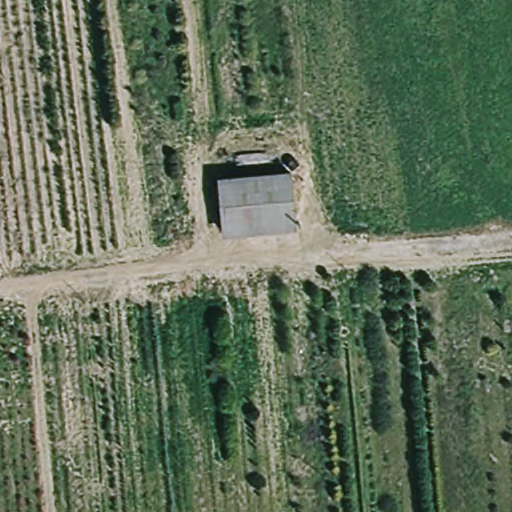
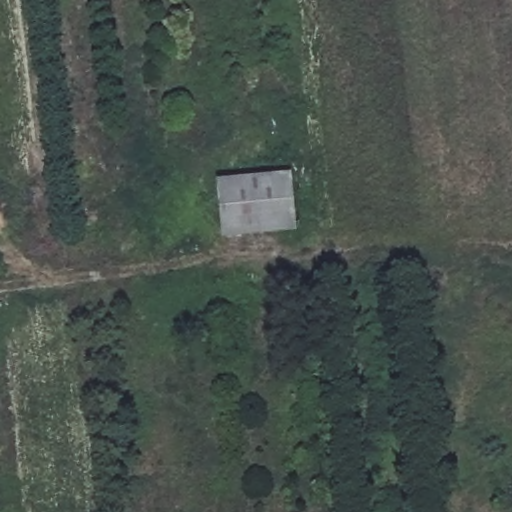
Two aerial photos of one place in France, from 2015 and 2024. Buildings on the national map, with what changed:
unchanged [(296,231),(225,237),(219,182),(288,174),(296,231)]

